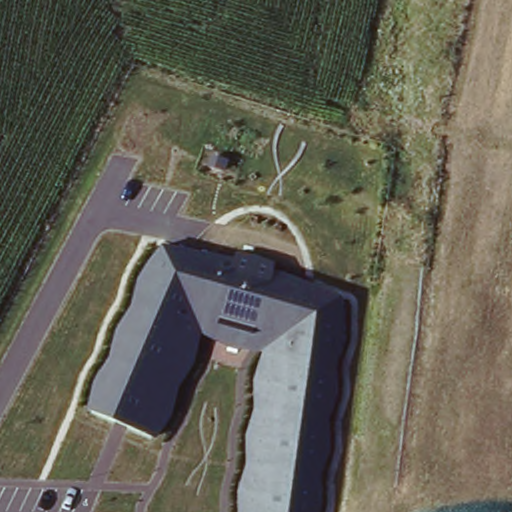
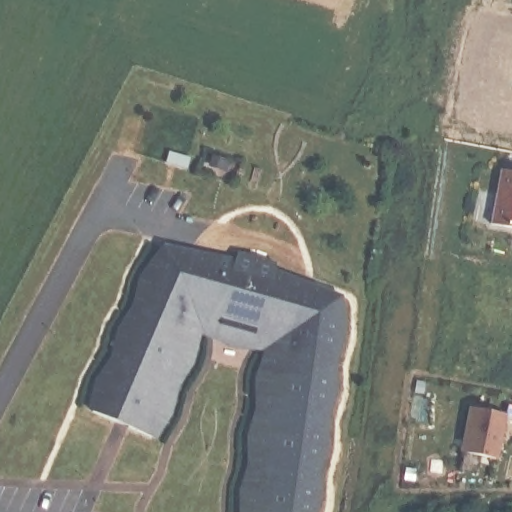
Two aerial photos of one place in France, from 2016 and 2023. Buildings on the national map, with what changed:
new [(499,173),(512,176),(512,233),(489,229),(499,173)]
unchanged [(247,464),(243,439),(254,411),(251,377),(262,351),(226,345),(203,332),(197,359),(178,384),(173,414),(152,438),(87,413),(94,383),(110,363),(113,335),(132,309),(140,276),(161,242),(231,256),(235,248),(275,260),(273,268),(344,294),(347,333),(337,361),(339,390),(329,417),(331,448),(320,476),(323,501),(319,512),(239,512),(237,491),(247,464)]
new [(506,409),(498,457),(477,454),(476,468),(460,465),(468,403),(506,409)]

